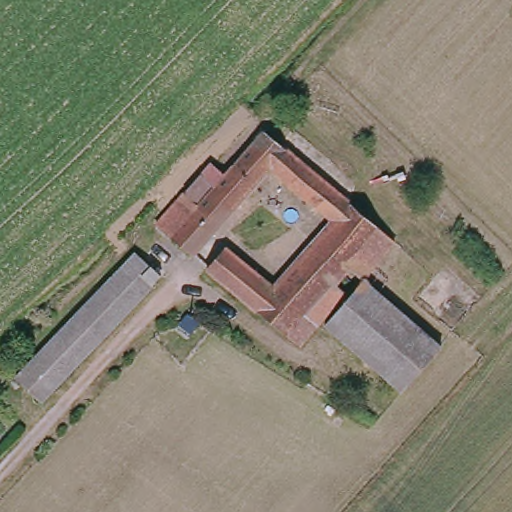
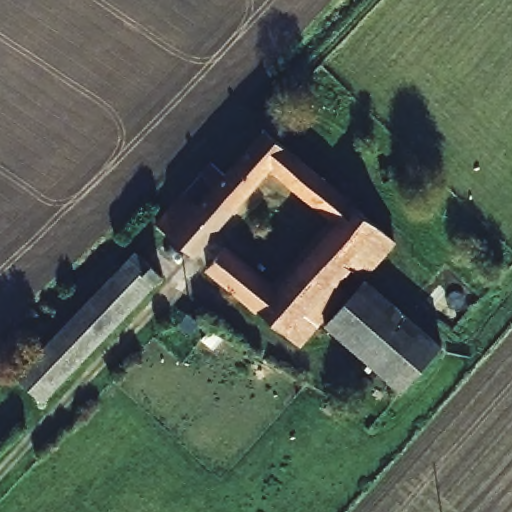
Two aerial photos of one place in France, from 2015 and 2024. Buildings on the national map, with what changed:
unchanged [(346,265),(331,280),(347,293),(299,347),(208,269),(226,246),(276,288),(332,221),(268,167),(192,255),(158,224),(199,172),(216,185),(273,114),(296,132),(284,147),(394,241),(361,277),(346,265)]
unchanged [(49,405),(18,377),(138,252),(162,280),(49,405)]
unchanged [(401,390),(324,327),(364,279),(441,344),(401,390)]

